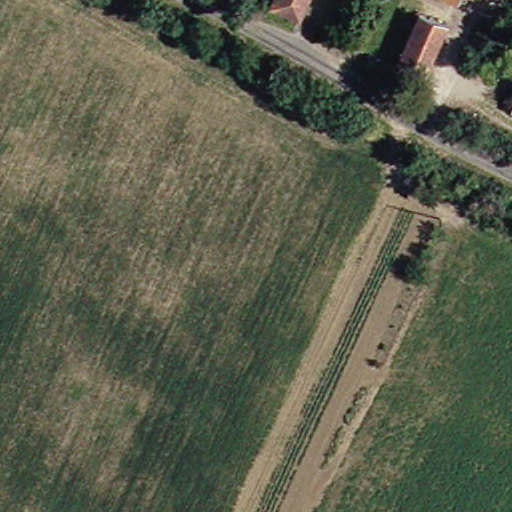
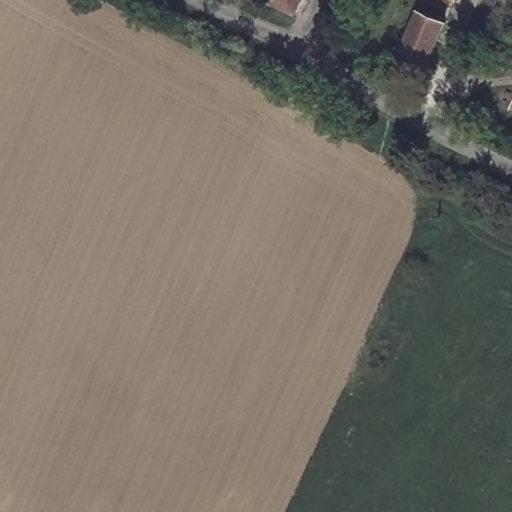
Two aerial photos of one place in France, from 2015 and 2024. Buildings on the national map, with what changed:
unchanged [(284,0),(309,0),(306,9),(284,0)]
unchanged [(405,55),(425,14),(450,23),(430,67),(405,55)]

